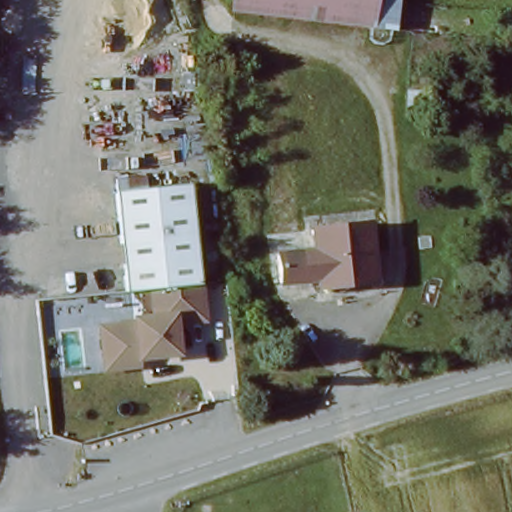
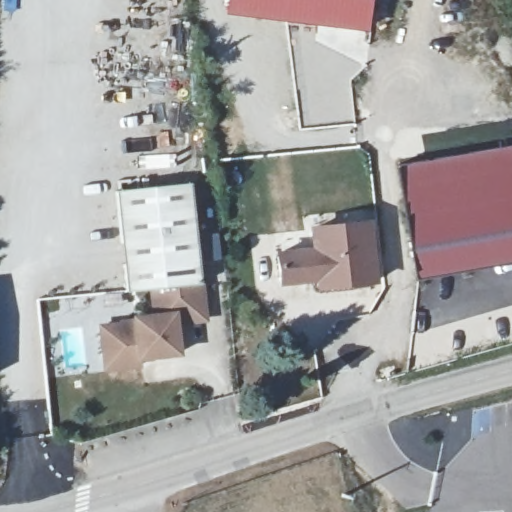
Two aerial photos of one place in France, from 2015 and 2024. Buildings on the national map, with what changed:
unchanged [(397,0),(394,32),(229,14),(231,0),(397,0)]
new [(417,275),(399,161),(512,141),(512,259),(417,275)]
demolished [(448,152),(462,204),(408,220),(394,167),(448,152)]
unchanged [(107,379),(106,370),(101,332),(122,330),(123,336),(138,335),(137,320),(156,317),(152,289),(131,292),(117,192),(192,182),(212,323),(179,328),(183,361),(157,364),(157,357),(141,360),(141,366),(142,375),(107,379)]
unchanged [(384,287),(319,296),(318,286),(281,291),(276,252),(312,249),(309,229),(375,222),(384,287)]

